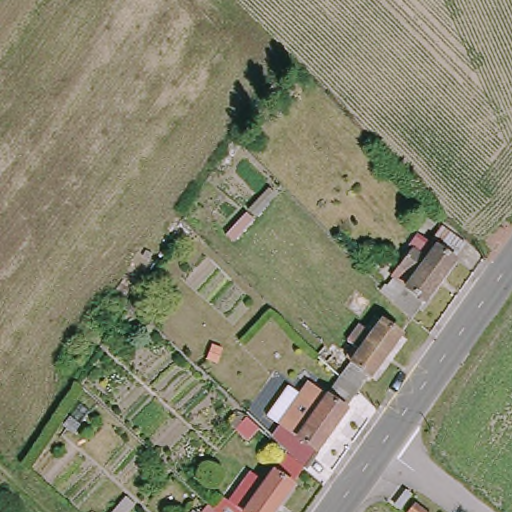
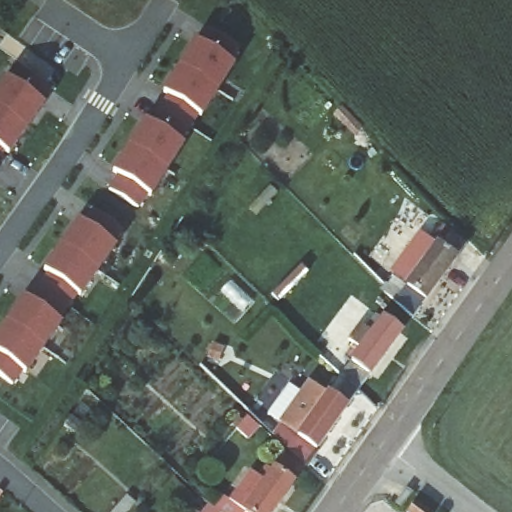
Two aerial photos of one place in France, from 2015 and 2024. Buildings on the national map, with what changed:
new [(236,66),(185,145),(151,196),(148,195),(139,210),(108,190),(117,176),(112,173),(144,121),(148,124),(167,96),(163,94),(194,42),(197,44),(208,29),(242,51),(236,66)]
new [(43,103),(45,106),(9,155),(0,169),(0,89),(6,80),(9,81),(18,70),(50,92),(43,103)]
new [(118,247),(63,322),(25,373),(15,386),(0,376),(0,331),(24,298),(28,301),(48,275),(43,271),(78,221),(82,224),(92,210),(125,234),(118,247)]
unchanged [(394,295),(405,281),(399,275),(427,238),(433,242),(445,227),(469,242),(416,317),(394,295)]
unchanged [(351,358),(343,353),(354,338),(360,342),(369,330),(363,325),(374,310),(405,333),(364,391),(342,370),(351,358)]
unchanged [(288,447),(306,425),(296,417),(309,401),(318,406),(342,370),(364,391),(310,468),(288,447)]
unchanged [(229,498),(247,471),(254,476),(263,464),(271,471),(288,447),(310,468),(278,512),(233,512),(238,506),(229,498)]
unchanged [(134,507),(130,512),(114,512),(125,499),(134,507)]
unchanged [(224,512),(205,512),(213,502),(224,512)]

